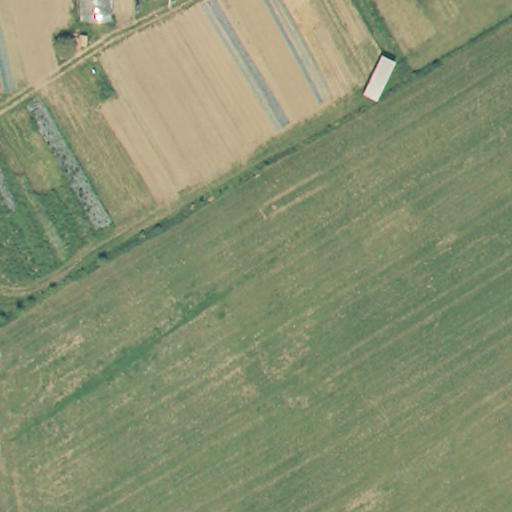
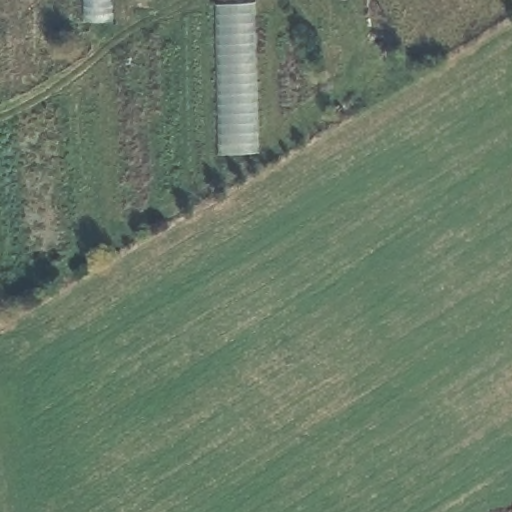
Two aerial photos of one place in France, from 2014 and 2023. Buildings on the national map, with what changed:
unchanged [(106,21),(82,22),(82,0),(106,0),(106,21)]
new [(216,154),(212,2),(253,3),(256,153),(216,154)]

